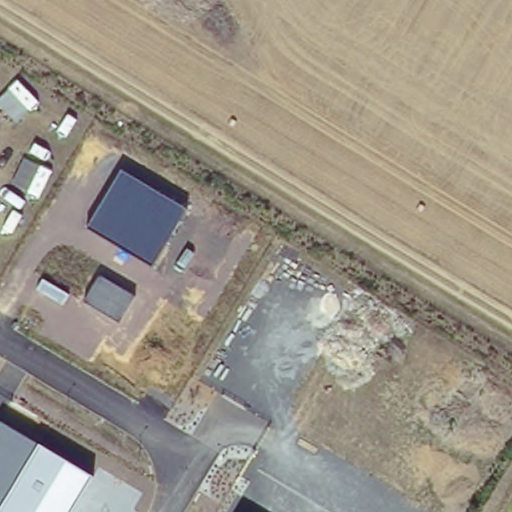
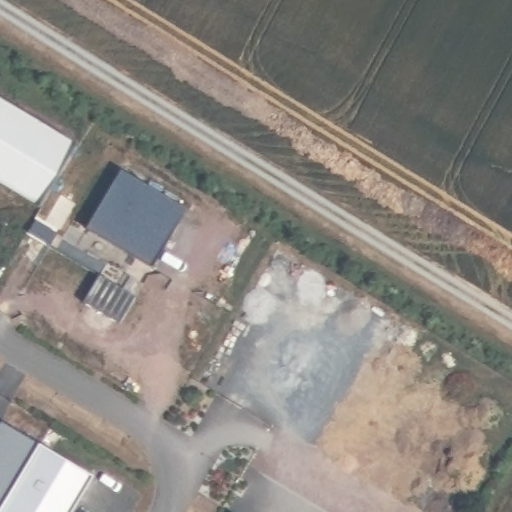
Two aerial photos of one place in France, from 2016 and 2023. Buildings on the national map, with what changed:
new [(0,187),(0,99),(78,146),(39,211),(0,187)]
unchanged [(153,268),(88,227),(120,170),(186,209),(153,268)]
unchanged [(119,323),(83,303),(101,274),(135,297),(119,323)]
unchanged [(0,512),(0,425),(1,422),(91,476),(70,512),(0,512)]

